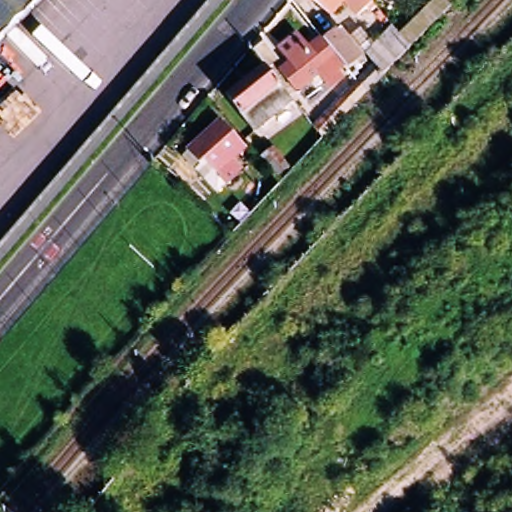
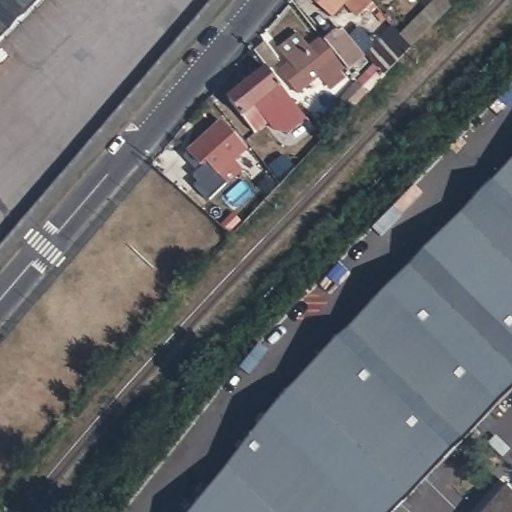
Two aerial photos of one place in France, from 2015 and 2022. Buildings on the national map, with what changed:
unchanged [(0,0),(57,0),(0,56),(0,0)]
unchanged [(360,14),(345,1),(332,15),(314,0),(372,0),(374,2),(360,14)]
new [(454,6),(411,46),(401,34),(433,0),(455,0),(452,4),(454,6)]
demolished [(455,0),(452,4),(448,0),(455,0)]
unchanged [(315,127),(359,82),(376,64),(367,53),(392,25),(411,46),(367,93),(325,139),(315,127)]
unchanged [(291,62),(279,47),(298,32),(309,46),(322,36),(325,40),(339,26),(364,56),(349,69),(344,64),(339,69),(345,76),(332,87),(326,79),(317,87),(312,81),(297,92),(280,70),(291,62)]
unchanged [(228,97),(267,66),(254,50),(266,40),(281,59),(269,68),(289,93),(294,100),(256,131),(228,97)]
unchanged [(188,144),(221,115),(247,143),(236,154),(244,164),(218,187),(197,165),(183,149),(188,144)]
demolished [(290,165),(272,143),(285,133),(302,155),(290,165)]
new [(280,181),(262,158),(275,148),(292,170),(280,181)]
demolished [(185,179),(169,164),(177,154),(194,169),(185,179)]
new [(292,386),(347,330),(512,161),(512,386),(390,512),(190,512),(225,468),(292,386)]
new [(505,466),(512,478),(512,512),(472,512),(505,466)]

